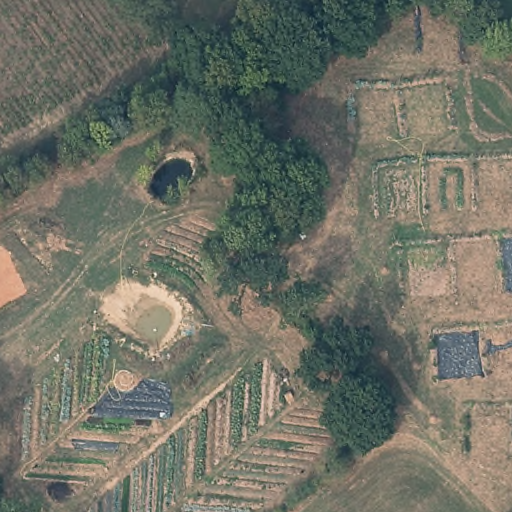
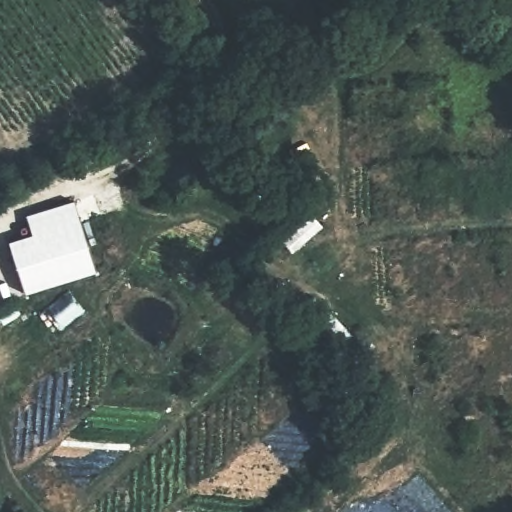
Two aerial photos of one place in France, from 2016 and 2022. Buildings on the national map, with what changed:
new [(26,216),(74,201),(97,272),(26,293),(9,241),(32,234),(26,216)]

